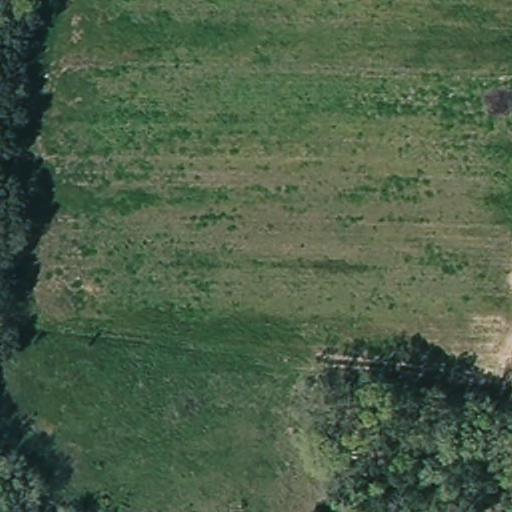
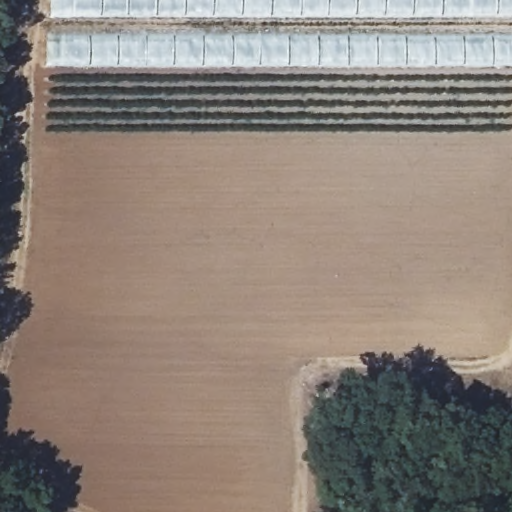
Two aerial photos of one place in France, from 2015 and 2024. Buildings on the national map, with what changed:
new [(50,0),(512,0),(512,14),(50,14),(50,0)]
new [(45,31),(512,31),(512,62),(45,62),(45,31)]

